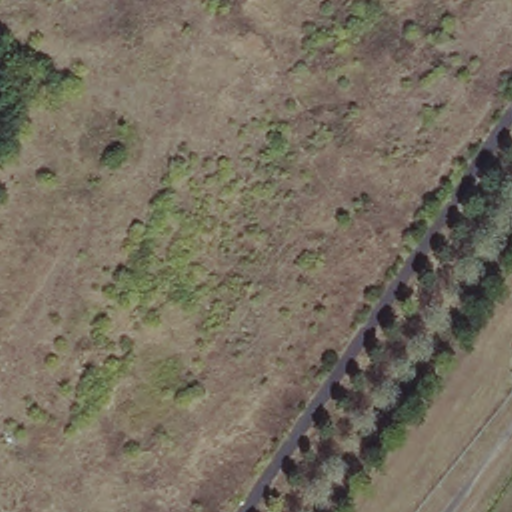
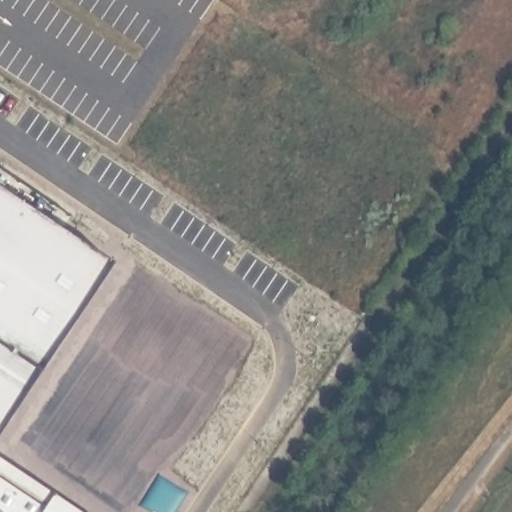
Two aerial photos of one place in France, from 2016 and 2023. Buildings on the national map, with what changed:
new [(106,261),(0,427),(0,190),(106,261)]
new [(82,512),(0,512),(0,460),(82,512)]

